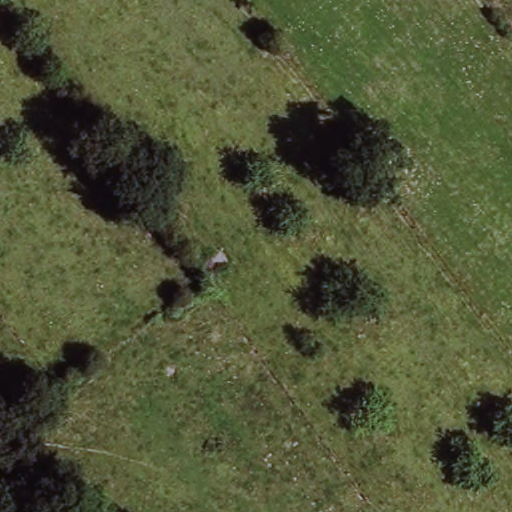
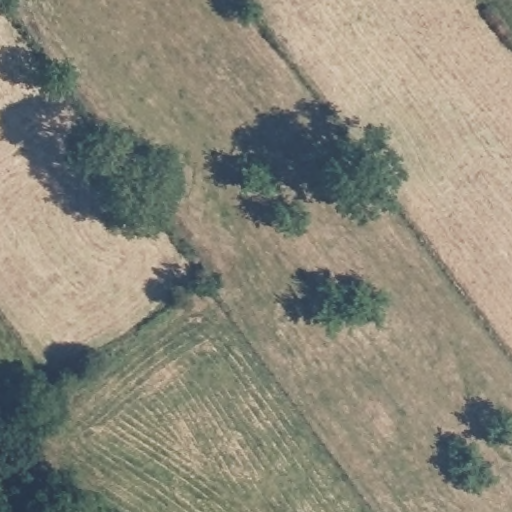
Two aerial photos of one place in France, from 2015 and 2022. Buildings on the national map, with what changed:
[]

